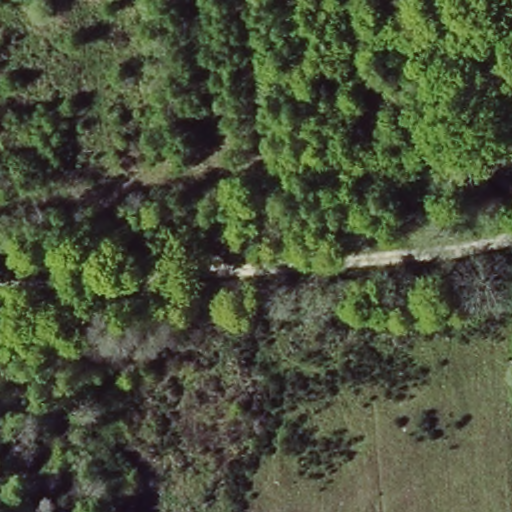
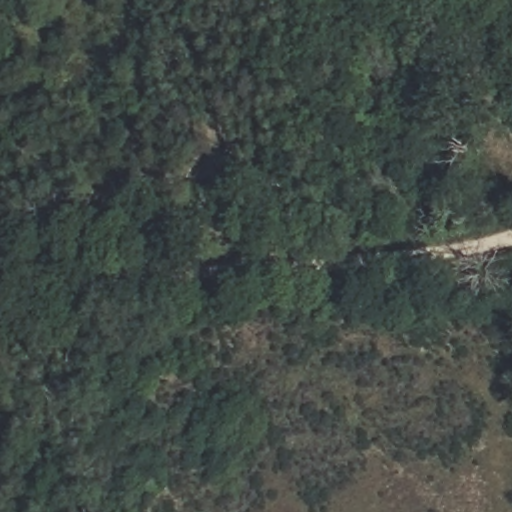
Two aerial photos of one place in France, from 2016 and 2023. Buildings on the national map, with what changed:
[]

